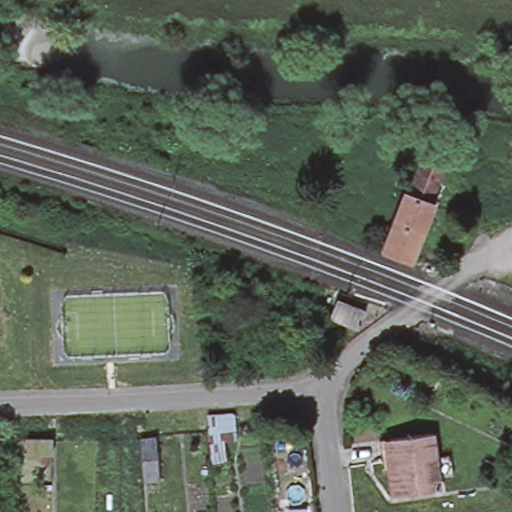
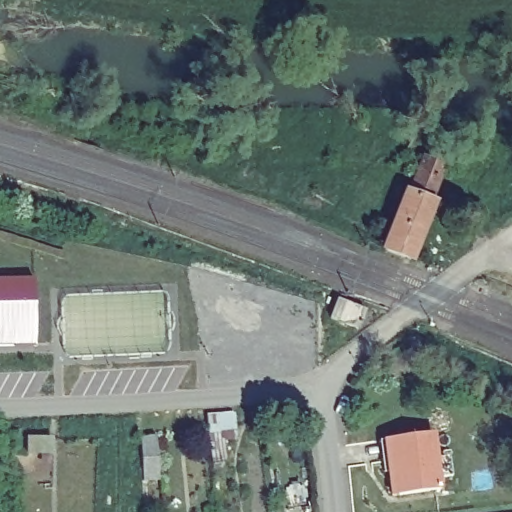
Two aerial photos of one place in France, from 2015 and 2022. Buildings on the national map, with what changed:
unchanged [(411,256),(385,245),(403,202),(406,203),(417,170),(418,167),(425,170),(439,175),(427,210),(430,211),(411,256)]
new [(36,278),(38,345),(0,346),(0,278),(36,278)]
unchanged [(366,311),(359,330),(331,319),(338,300),(366,311)]
unchanged [(433,435),(441,491),(397,497),(390,440),(433,435)]
unchanged [(142,438),(158,437),(160,455),(143,455),(142,438)]
unchanged [(55,440),(55,455),(28,455),(30,440),(55,440)]

